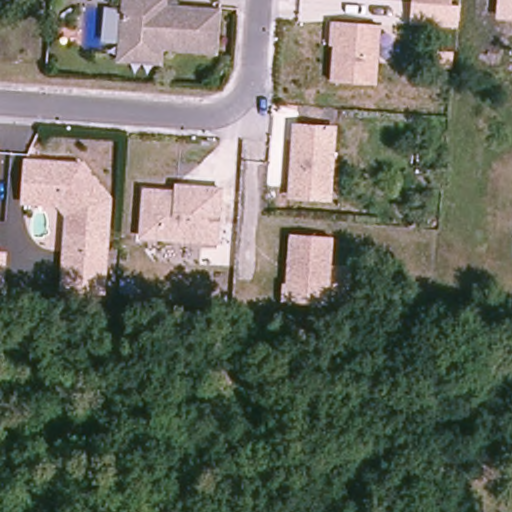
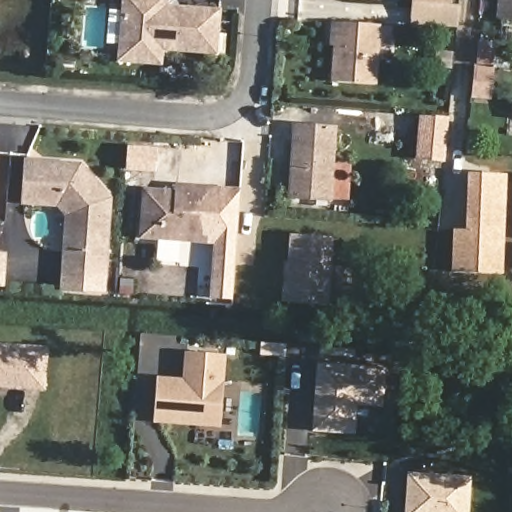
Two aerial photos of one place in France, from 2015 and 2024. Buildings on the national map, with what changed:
unchanged [(121,46),(122,0),(163,0),(162,9),(217,12),(215,52),(161,49),(161,61),(120,59),(121,46)]
unchanged [(452,0),(452,5),(460,6),(456,27),(412,26),(413,0),(452,0)]
unchanged [(496,19),(498,0),(512,0),(512,20),(496,19)]
unchanged [(332,46),(328,45),(330,22),(381,26),(378,85),(331,82),(332,46)]
new [(444,163),(415,161),(418,115),(448,117),(444,163)]
unchanged [(337,126),(332,202),(287,199),(293,123),(337,126)]
unchanged [(64,215),(55,202),(19,199),(22,159),(77,163),(106,198),(99,291),(58,287),(61,250),(62,230),(64,215)]
new [(453,230),(466,230),(467,173),(507,175),(503,275),(452,272),(453,230)]
unchanged [(213,242),(137,236),(140,188),(172,191),(172,184),(200,187),(217,188),(213,242)]
unchanged [(281,284),(285,284),(287,235),(327,237),(325,304),(280,302),(281,284)]
new [(46,390),(0,386),(0,345),(49,349),(46,390)]
new [(192,354),(228,357),(223,424),(161,419),(162,394),(194,397),(189,396),(190,387),(192,354)]
new [(320,382),(321,364),(387,369),(384,406),(358,403),(356,432),(317,430),(318,396),(320,382)]
new [(468,512),(404,512),(407,473),(471,477),(468,512)]

